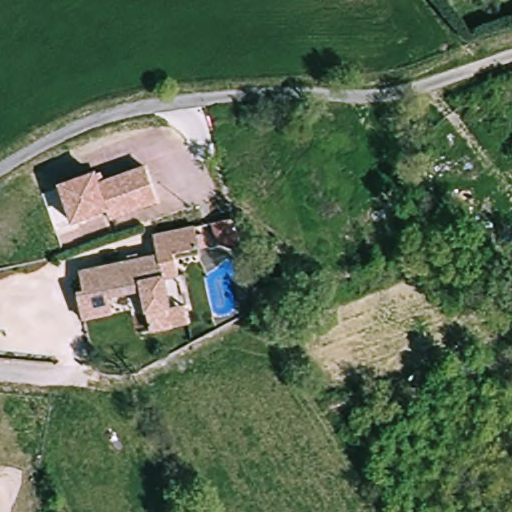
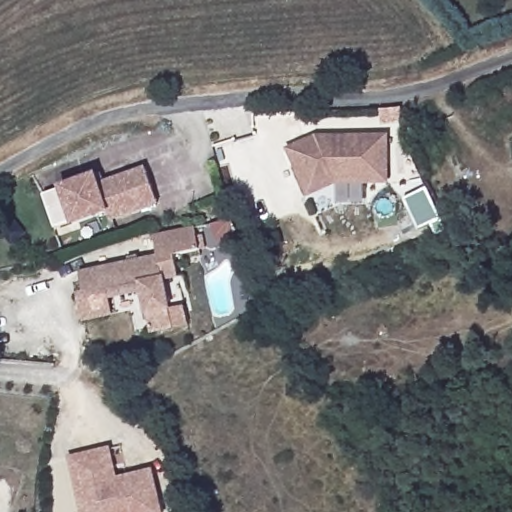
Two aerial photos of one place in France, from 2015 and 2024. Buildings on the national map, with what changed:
new [(334,184),(307,198),(286,148),(316,134),(389,135),(389,184),(334,184)]
unchanged [(104,180),(146,167),(156,204),(110,222),(108,211),(72,225),(58,184),(94,172),(101,173),(104,180)]
demolished [(359,207),(397,195),(401,219),(364,228),(359,207)]
unchanged [(180,280),(167,281),(174,331),(151,334),(146,294),(111,298),(114,316),(84,320),(80,294),(85,293),(82,273),(161,259),(156,238),(198,231),(201,240),(206,240),(208,252),(176,256),(180,280)]
new [(110,449),(117,477),(153,469),(164,512),(81,512),(68,457),(110,449)]

